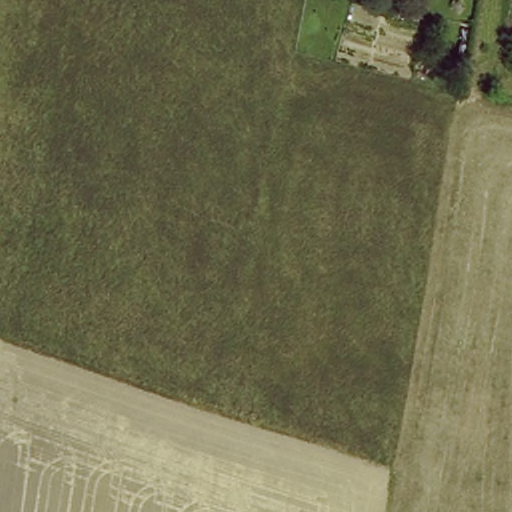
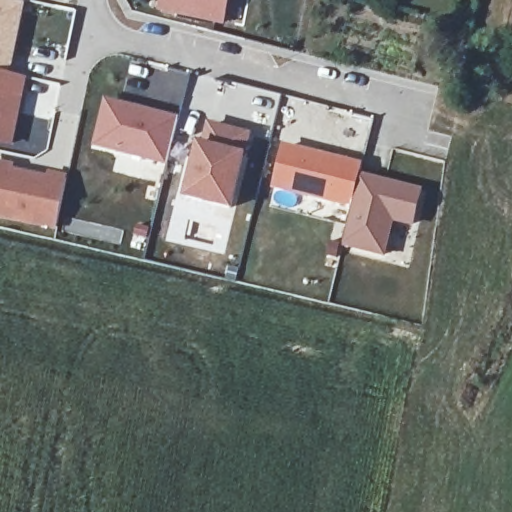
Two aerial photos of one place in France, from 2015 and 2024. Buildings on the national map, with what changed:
new [(4,0),(26,5),(12,76),(27,79),(13,147),(0,144),(0,0),(4,0)]
new [(229,0),(223,26),(157,13),(160,0),(229,0)]
new [(179,119),(167,167),(93,148),(105,100),(179,119)]
new [(202,144),(207,123),(252,134),(247,156),(232,212),(182,200),(197,143),(202,144)]
new [(283,145),(362,164),(360,174),(423,190),(413,229),(394,223),(385,259),(342,248),(351,210),(272,190),(283,145)]
new [(13,170),(48,177),(48,171),(67,175),(66,181),(56,232),(0,220),(0,162),(14,165),(13,170)]

